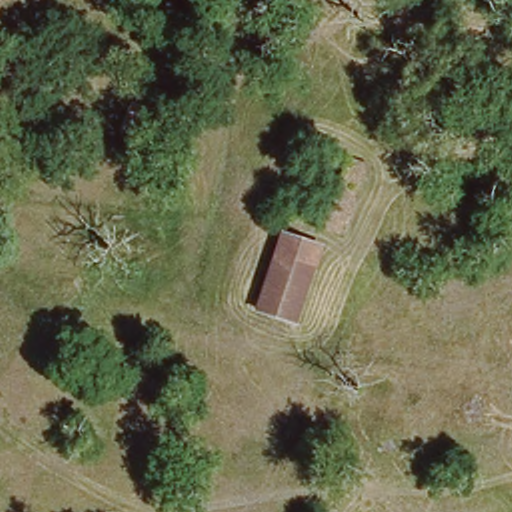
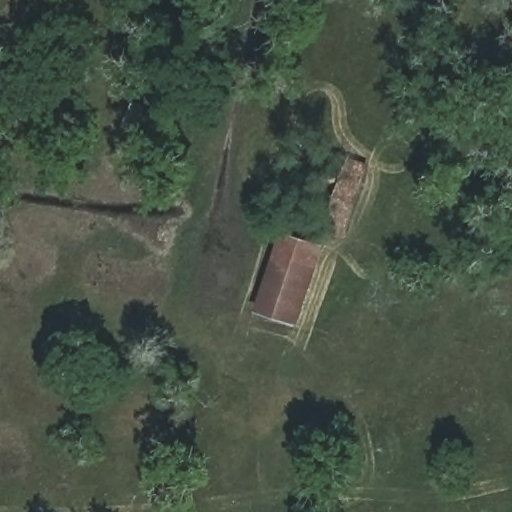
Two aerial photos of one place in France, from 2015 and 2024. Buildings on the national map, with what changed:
unchanged [(320,228),(346,157),(367,164),(345,234),(320,228)]
unchanged [(291,329),(248,309),(263,267),(280,274),(285,261),(273,256),(286,230),(322,253),(291,329)]

